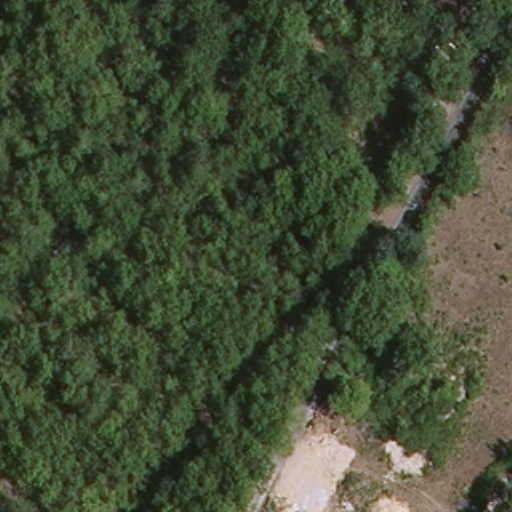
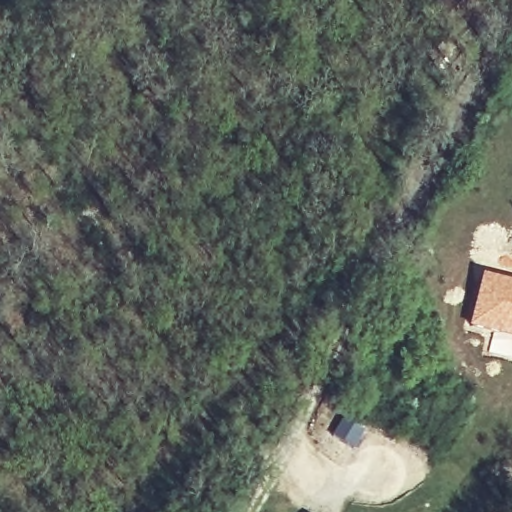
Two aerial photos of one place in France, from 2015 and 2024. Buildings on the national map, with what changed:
unchanged [(486,3),(470,17),(455,31),(434,7),(441,0),(483,0),(486,3)]
new [(468,327),(482,274),(512,282),(512,357),(487,351),(492,332),(468,327)]

